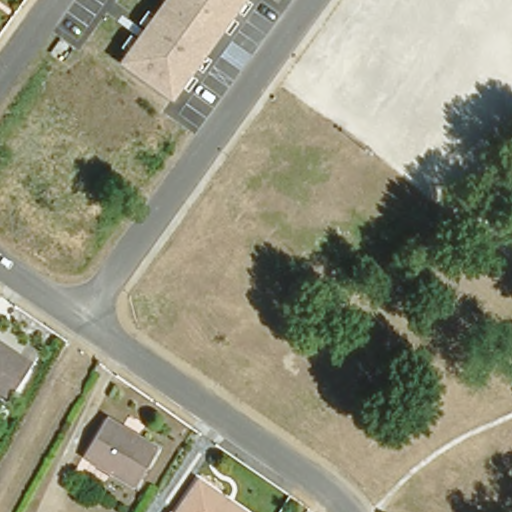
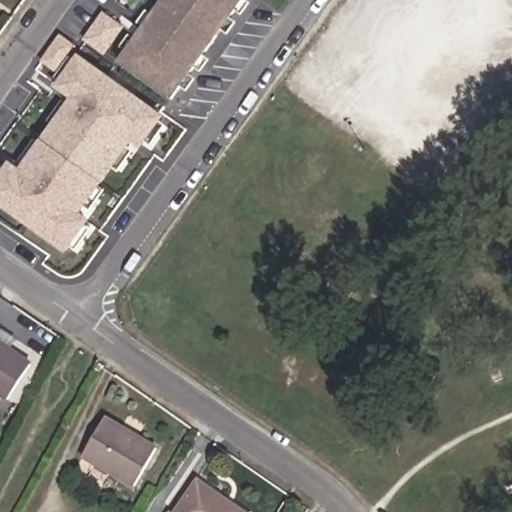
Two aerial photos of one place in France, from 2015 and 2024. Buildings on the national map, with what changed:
unchanged [(176,102),(118,66),(166,0),(248,0),(176,102)]
new [(10,162),(20,170),(75,95),(58,84),(75,60),(82,75),(105,75),(160,115),(140,142),(131,135),(77,210),(86,217),(65,246),(0,199),(0,177),(10,162)]
unchanged [(24,359),(1,395),(0,393),(0,343),(24,359)]
unchanged [(157,441),(134,477),(83,446),(105,410),(157,441)]
unchanged [(252,512),(171,512),(195,475),(252,512)]

